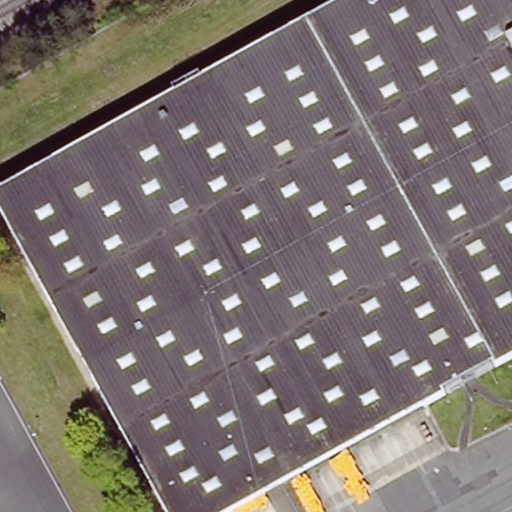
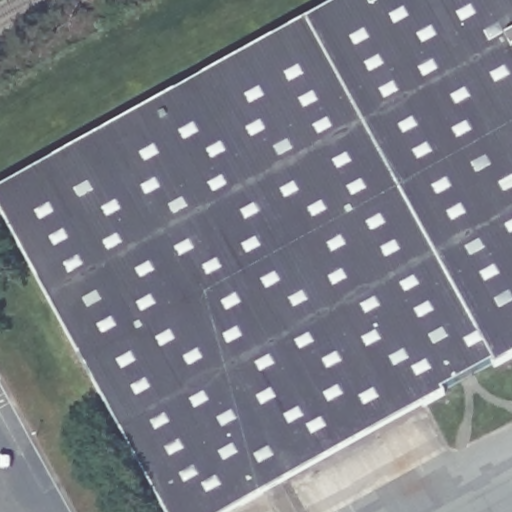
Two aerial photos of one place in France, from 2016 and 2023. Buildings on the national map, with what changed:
unchanged [(512,0),(512,359),(493,370),(492,366),(442,391),(444,396),(422,408),(419,405),(218,512),(163,512),(52,311),(0,217),(0,192),(334,8),(348,0),(512,0)]

